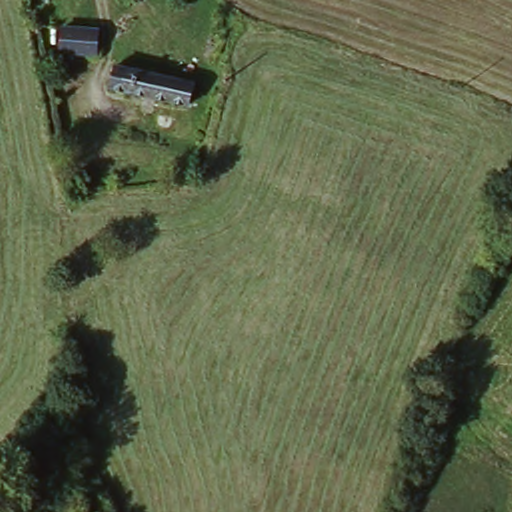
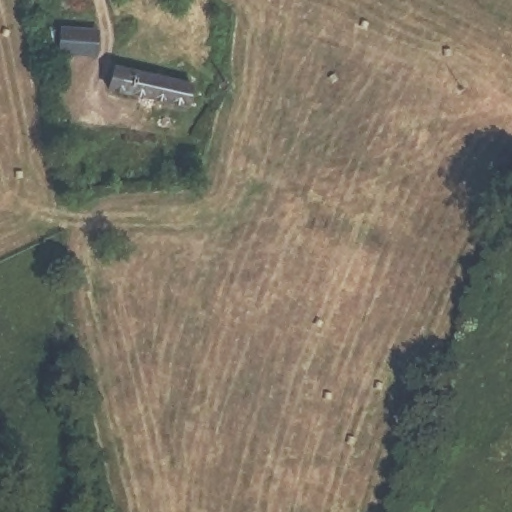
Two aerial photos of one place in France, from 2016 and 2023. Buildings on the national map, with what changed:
unchanged [(100,35),(99,57),(60,54),(61,32),(100,35)]
unchanged [(192,86),(188,110),(108,97),(112,74),(192,86)]

